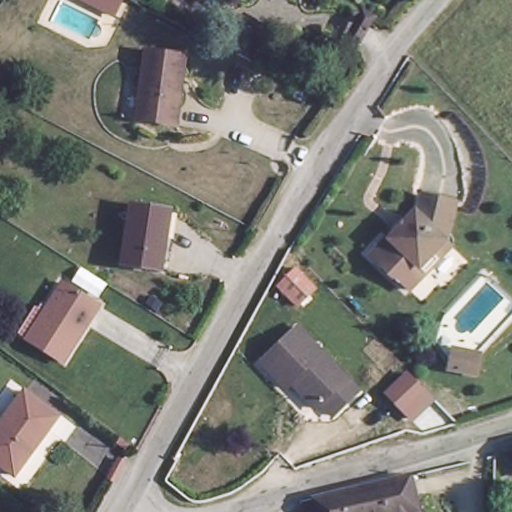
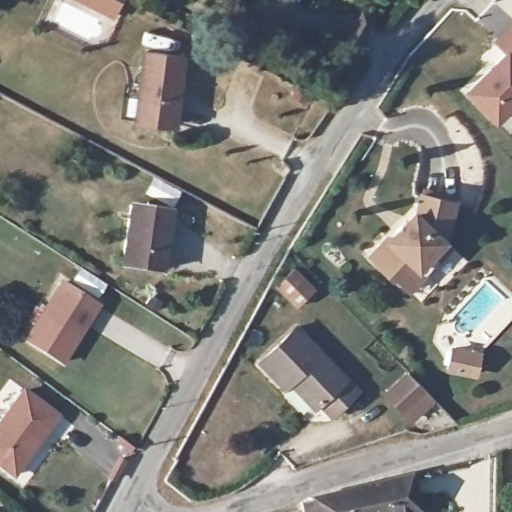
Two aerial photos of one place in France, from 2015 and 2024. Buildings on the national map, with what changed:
unchanged [(73,2),(75,0),(123,0),(114,20),(73,2)]
unchanged [(235,19),(240,21),(243,15),(271,31),(257,57),(223,40),(235,19)]
new [(466,94),(510,51),(498,39),(512,24),(512,115),(500,127),(466,94)]
unchanged [(182,55),(174,125),(135,119),(143,48),(182,55)]
unchanged [(424,269),(408,286),(392,272),(390,274),(373,258),(390,240),(387,236),(418,205),(420,194),(454,200),(448,231),(444,235),(450,241),(424,269)]
unchanged [(164,210),(155,265),(124,257),(132,204),(164,210)]
unchanged [(96,303),(60,360),(28,339),(48,310),(43,307),(60,280),(96,303)]
unchanged [(287,385),(283,389),(255,360),(294,325),(357,388),(330,413),(320,402),(312,411),(287,385)]
unchanged [(480,350),(476,370),(451,366),(454,345),(480,350)]
unchanged [(422,426),(415,419),(398,401),(419,380),(437,398),(444,405),(422,426)]
unchanged [(58,413),(17,472),(0,461),(0,421),(23,386),(58,413)]
unchanged [(305,499),(413,467),(425,512),(308,512),(305,499)]

